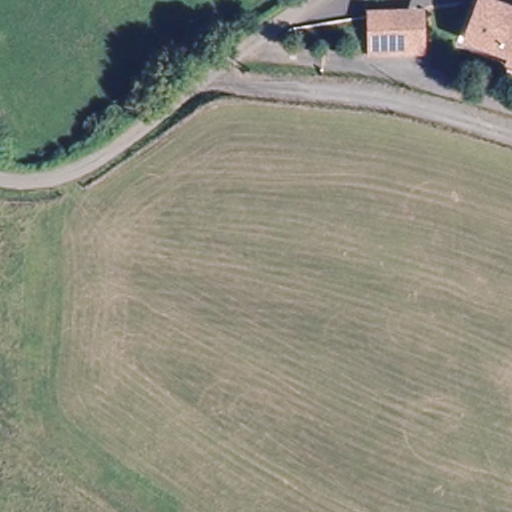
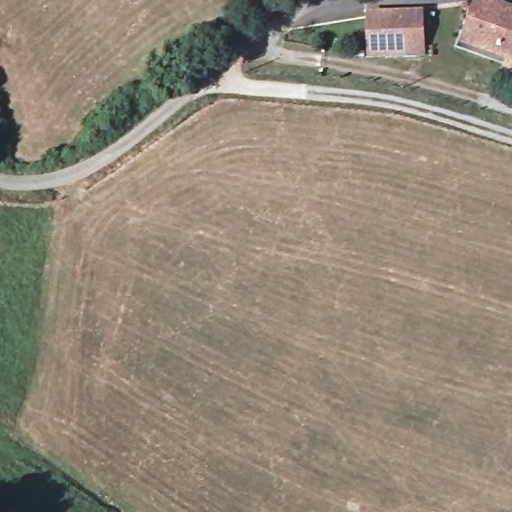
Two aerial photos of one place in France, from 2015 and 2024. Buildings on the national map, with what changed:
unchanged [(462,36),(475,0),(485,0),(512,11),(512,71),(503,68),(508,54),(462,36)]
unchanged [(427,6),(427,44),(377,43),(377,5),(427,6)]

